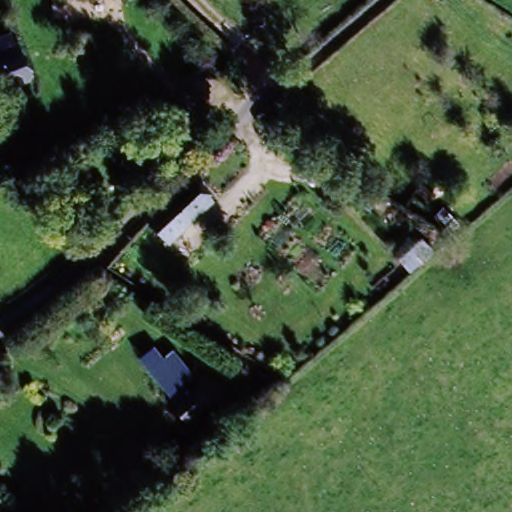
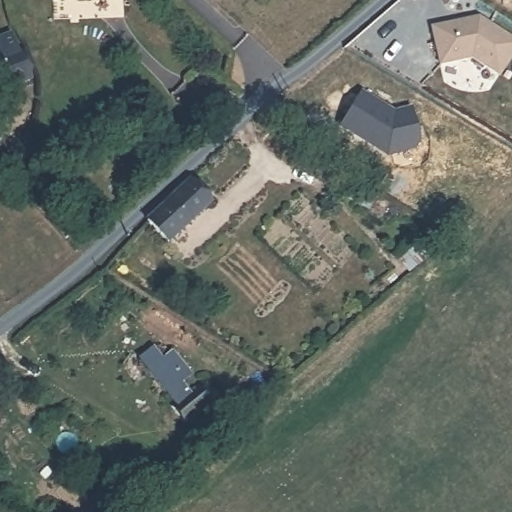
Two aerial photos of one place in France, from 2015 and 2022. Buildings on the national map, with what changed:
unchanged [(49,8),(49,0),(118,0),(49,8)]
new [(512,39),(512,61),(502,78),(475,61),(443,68),(434,31),(481,20),(482,24),(489,28),(490,26),(512,39)]
unchanged [(20,62),(0,70),(0,52),(13,47),(20,62)]
new [(395,112),(411,107),(421,148),(387,157),(340,128),(362,91),(395,112)]
unchanged [(194,192),(210,211),(163,247),(147,229),(194,192)]
demolished [(272,342),(252,320),(282,295),(302,318),(272,342)]
unchanged [(184,378),(174,386),(181,394),(187,389),(203,410),(183,427),(166,407),(170,404),(142,371),(166,351),(184,378)]

